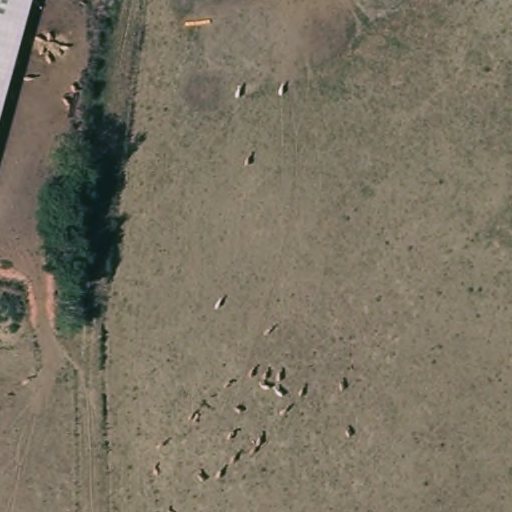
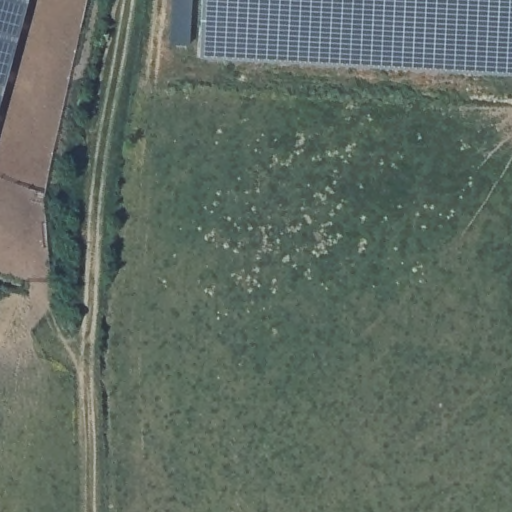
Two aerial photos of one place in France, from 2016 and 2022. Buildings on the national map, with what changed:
unchanged [(28,0),(0,104),(0,0),(28,0)]
new [(201,44),(171,41),(173,0),(512,0),(512,73),(201,55),(201,44)]

